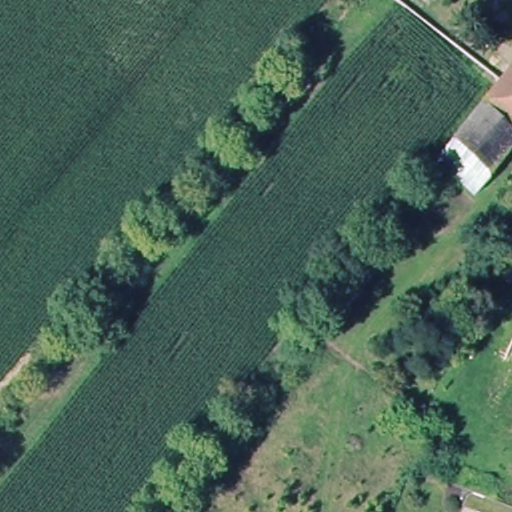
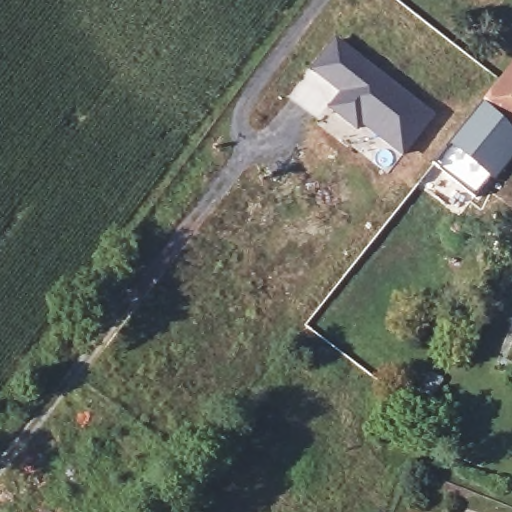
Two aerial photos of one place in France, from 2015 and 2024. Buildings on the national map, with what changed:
unchanged [(458,7),(450,0),(464,0),(458,7)]
new [(333,44),(429,120),(398,159),(358,126),(353,132),(327,111),(344,90),(332,80),(327,86),(310,72),(333,44)]
unchanged [(512,66),(512,138),(479,108),(500,81),(512,66)]
unchanged [(512,138),(512,153),(493,177),(452,141),(479,108),(512,138)]
unchanged [(493,177),(475,201),(434,165),(452,141),(493,177)]

